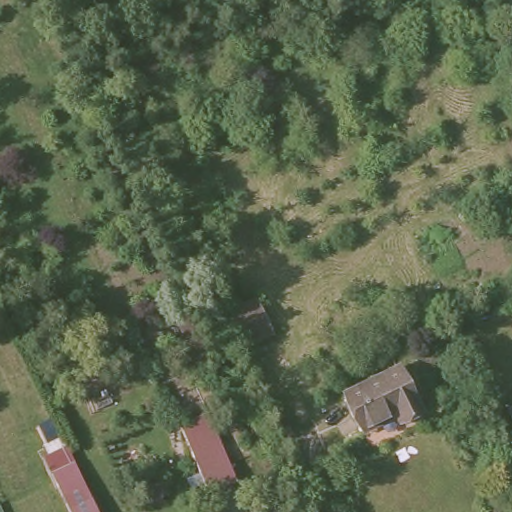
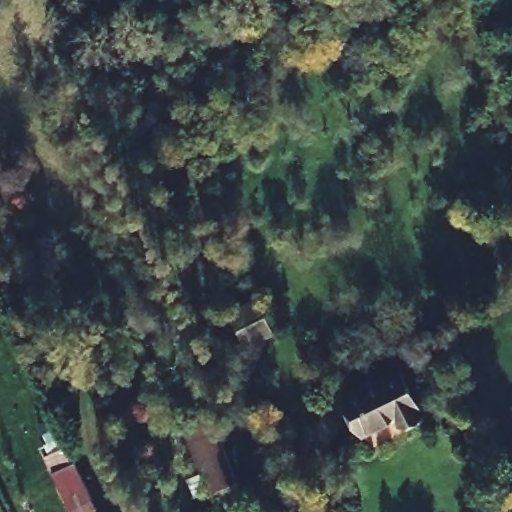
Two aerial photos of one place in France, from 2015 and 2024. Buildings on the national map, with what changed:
unchanged [(246,345),(231,312),(259,298),(274,332),(246,345)]
unchanged [(427,419),(407,429),(402,419),(367,436),(349,401),(404,373),(427,419)]
unchanged [(241,480),(213,491),(191,433),(187,423),(203,417),(214,413),(241,480)]
unchanged [(49,449),(44,438),(62,429),(68,440),(102,512),(74,512),(44,451),(49,449)]

